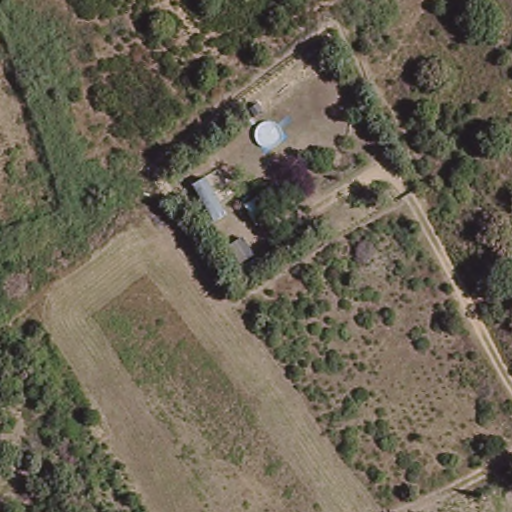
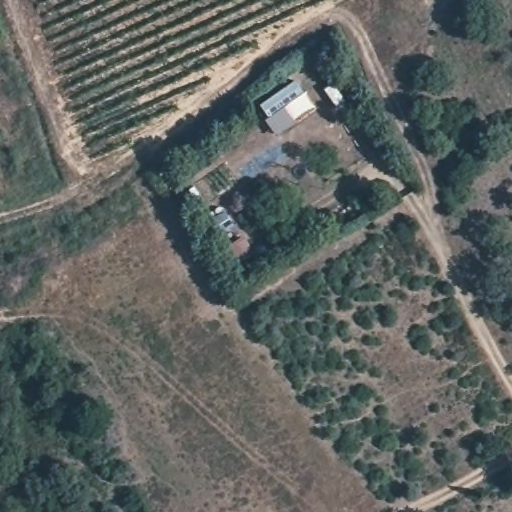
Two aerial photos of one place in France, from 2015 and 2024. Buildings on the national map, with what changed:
unchanged [(257,197),(271,218),(257,227),(242,207),(257,197)]

